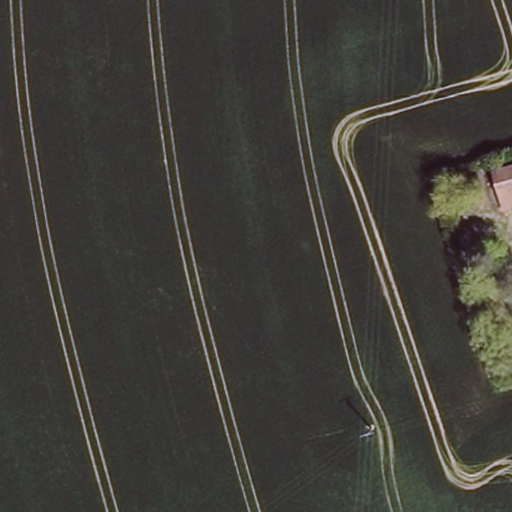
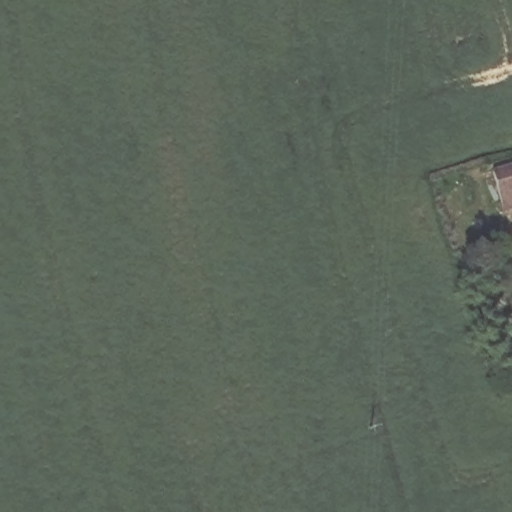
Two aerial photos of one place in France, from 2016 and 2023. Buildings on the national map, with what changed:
unchanged [(494,170),(512,165),(512,206),(505,209),(494,170)]

